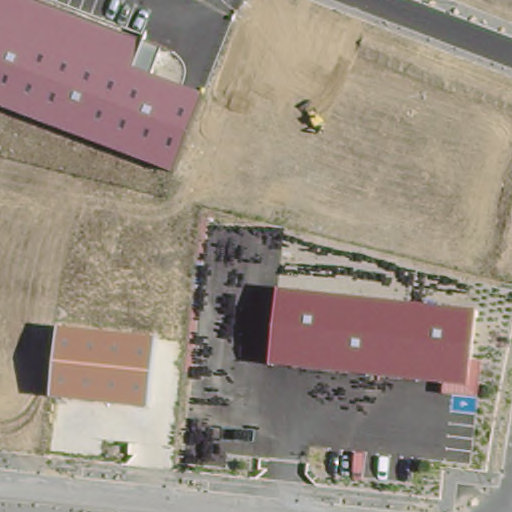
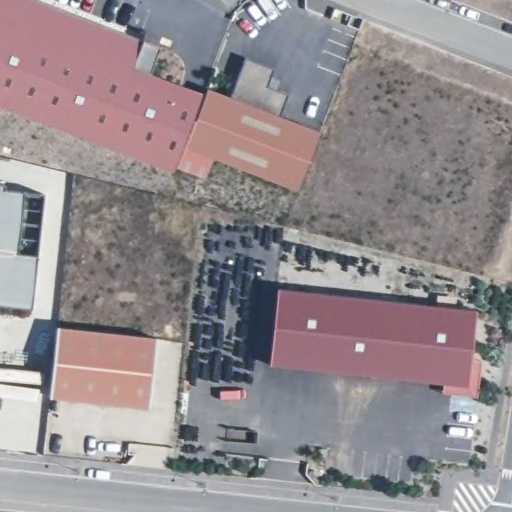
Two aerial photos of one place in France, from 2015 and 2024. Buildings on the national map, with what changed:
unchanged [(143,40),(142,43),(158,49),(150,74),(205,94),(173,174),(0,109),(0,0),(44,0),(143,40)]
new [(280,116),(320,131),(297,192),(212,158),(205,178),(176,167),(205,94),(205,90),(232,98),(247,59),(272,69),(266,87),(287,95),(280,116)]
new [(44,185),(33,287),(31,306),(0,303),(0,180),(44,185)]
unchanged [(477,308),(472,361),(482,361),(477,398),(440,394),(440,385),(268,367),(277,288),(477,308)]
unchanged [(157,336),(149,411),(49,399),(58,325),(157,336)]

